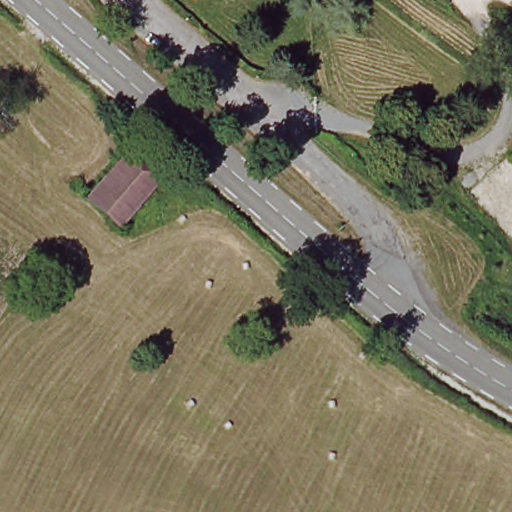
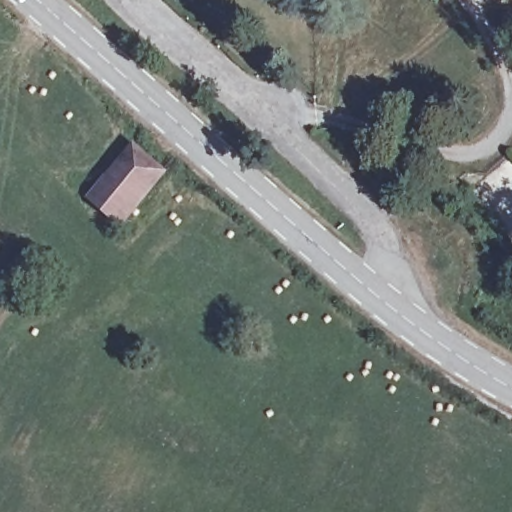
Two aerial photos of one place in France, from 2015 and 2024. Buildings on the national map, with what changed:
unchanged [(166,171),(123,222),(93,197),(135,146),(166,171)]

